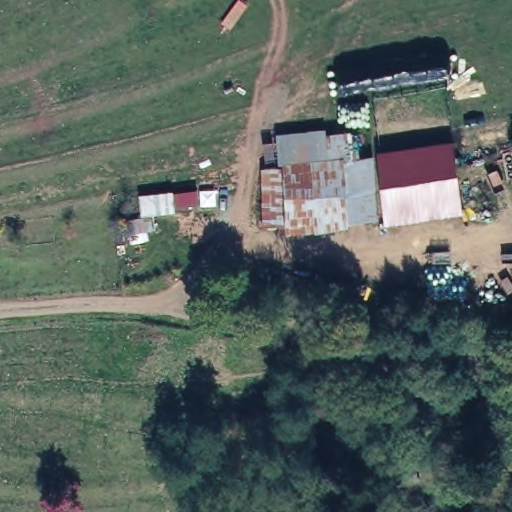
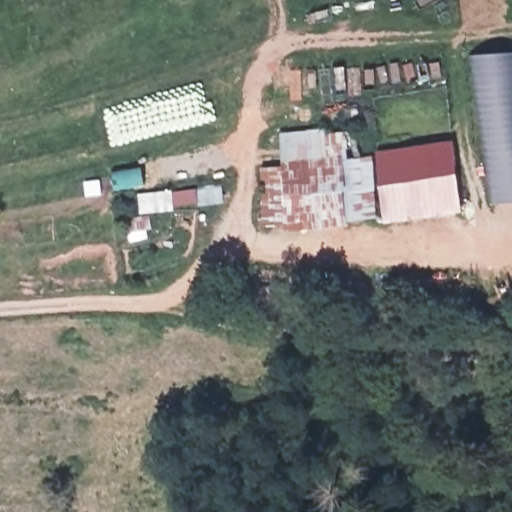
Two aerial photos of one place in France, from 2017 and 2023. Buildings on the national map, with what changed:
new [(491,203),(471,56),(512,51),(512,201),(491,203)]
unchanged [(348,222),(349,226),(288,233),(288,226),(265,227),(263,167),(284,165),(282,141),(299,140),(300,136),(314,136),(315,134),(345,132),(346,159),(376,158),(379,219),(348,222)]
unchanged [(455,141),(465,207),(384,217),(378,152),(455,141)]
unchanged [(271,268),(267,298),(223,291),(225,263),(271,268)]

